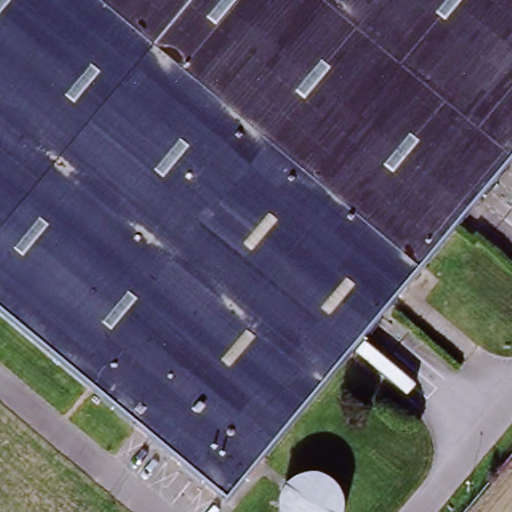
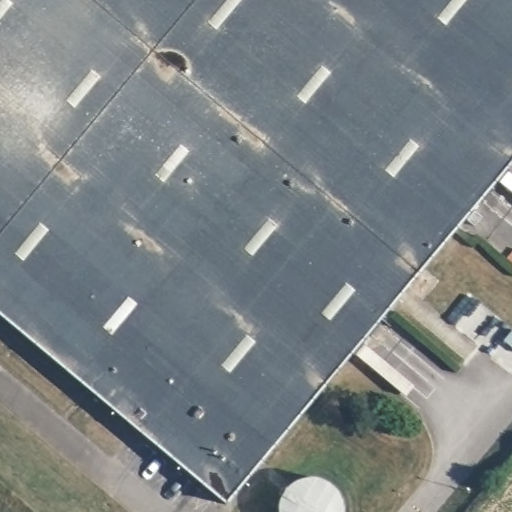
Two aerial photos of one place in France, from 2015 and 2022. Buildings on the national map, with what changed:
unchanged [(224,499),(0,311),(0,0),(512,0),(512,154),(224,499)]

